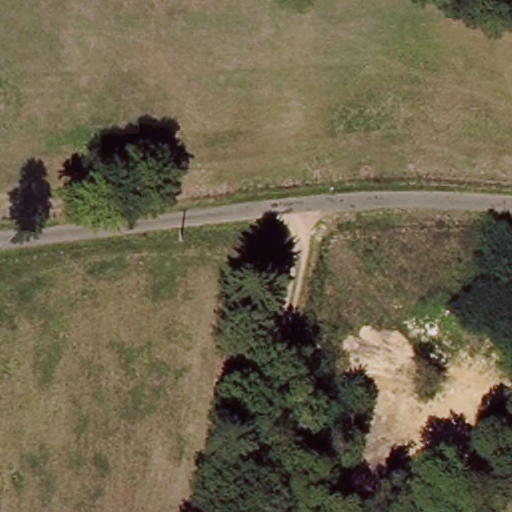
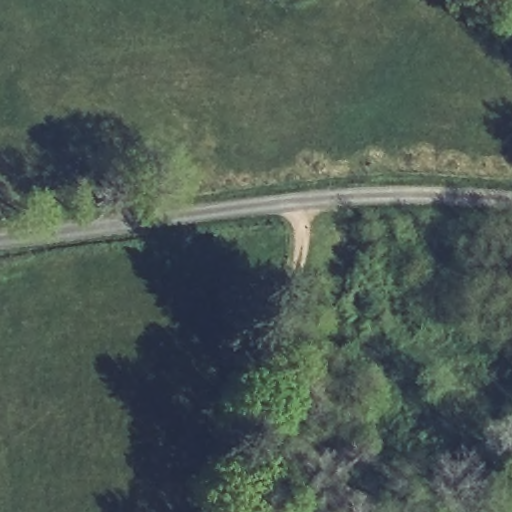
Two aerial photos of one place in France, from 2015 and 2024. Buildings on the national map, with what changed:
[]

